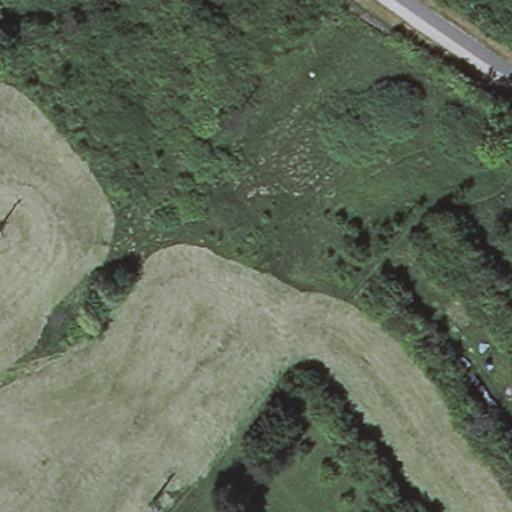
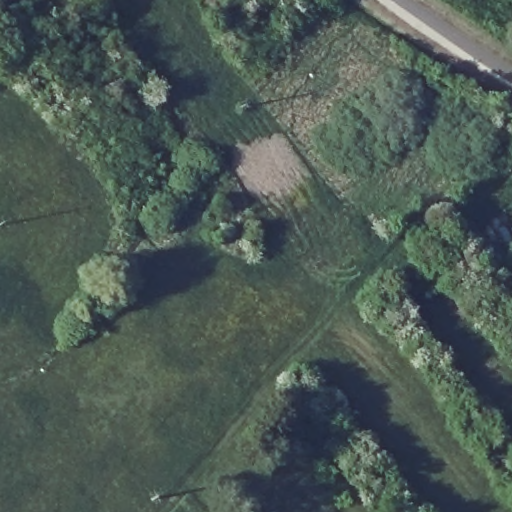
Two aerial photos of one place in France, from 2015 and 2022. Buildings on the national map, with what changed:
[]

